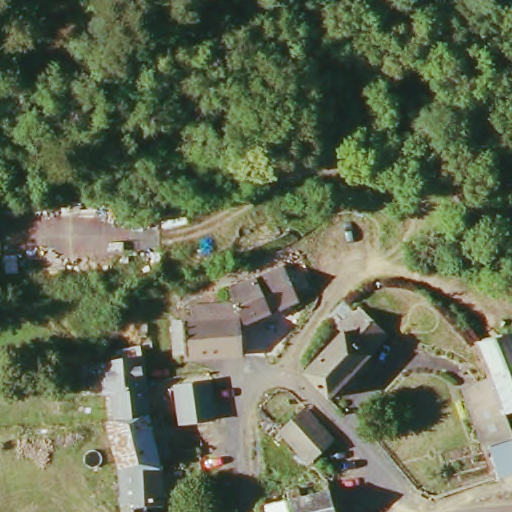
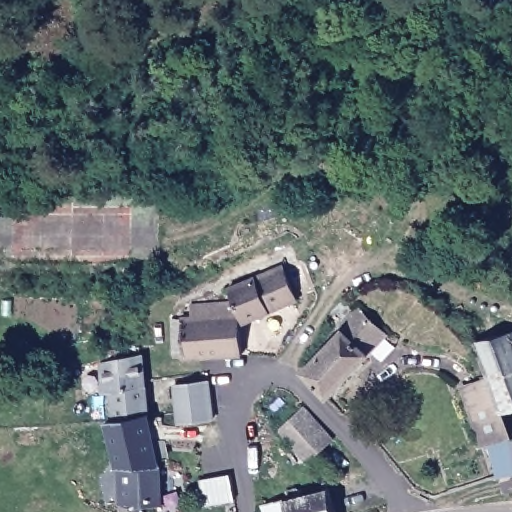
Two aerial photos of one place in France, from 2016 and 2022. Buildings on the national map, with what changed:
unchanged [(233,314),(243,347),(189,361),(188,356),(184,342),(175,345),(170,326),(187,320),(185,310),(227,293),(225,287),(238,286),(281,272),(289,289),(233,314)]
unchanged [(326,397),(304,373),(343,333),(339,328),(357,311),(383,340),(326,397)]
unchanged [(485,378),(467,345),(466,343),(501,325),(512,344),(512,399),(500,405),(485,378)]
unchanged [(111,393),(103,393),(98,363),(135,360),(141,388),(148,420),(120,425),(111,393)]
unchanged [(494,453),(461,390),(485,378),(500,405),(512,426),(512,446),(502,450),(494,453)]
unchanged [(203,380),(211,416),(200,419),(180,424),(171,385),(193,381),(203,380)]
unchanged [(277,433),(300,412),(327,440),(303,462),(277,433)]
unchanged [(155,505),(155,512),(133,512),(132,504),(137,503),(132,470),(130,470),(125,470),(110,426),(120,425),(148,420),(170,503),(155,505)]
unchanged [(512,446),(512,480),(502,450),(512,446)]
unchanged [(277,512),(275,503),(318,491),(325,512),(277,512)]

